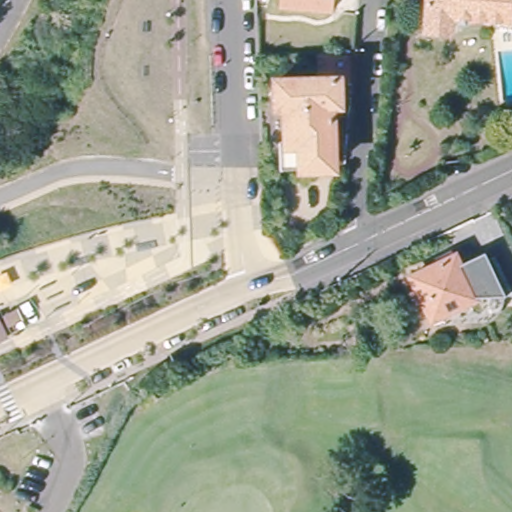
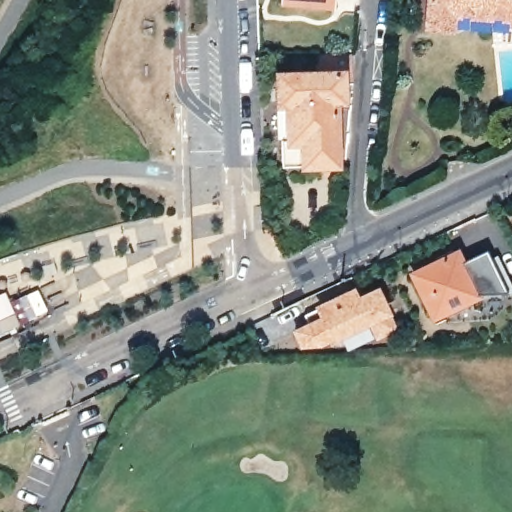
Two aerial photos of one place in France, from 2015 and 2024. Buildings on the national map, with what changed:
unchanged [(338,9),(287,5),(288,0),(339,0),(338,9)]
unchanged [(507,18),(452,15),(450,30),(423,26),(426,0),(509,0),(507,18)]
unchanged [(356,59),(356,84),(350,84),(351,108),(341,109),(339,171),(287,171),(289,124),(297,124),(299,104),(282,104),(282,81),(323,81),(323,60),(356,59)]
unchanged [(485,298),(479,307),(475,310),(471,312),(430,313),(425,304),(418,307),(399,263),(442,244),(446,253),(472,242),(475,251),(482,248),(499,287),(489,287),(488,291),(485,298)]
new [(295,331),(326,317),(323,312),(379,286),(391,315),(400,330),(377,341),(369,326),(336,342),(333,334),(319,343),(302,345),(295,331)]

